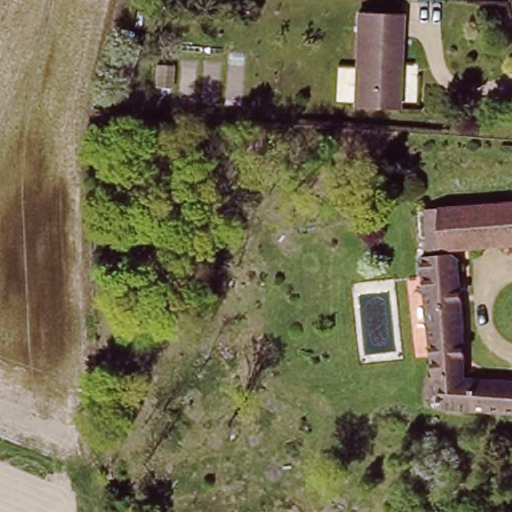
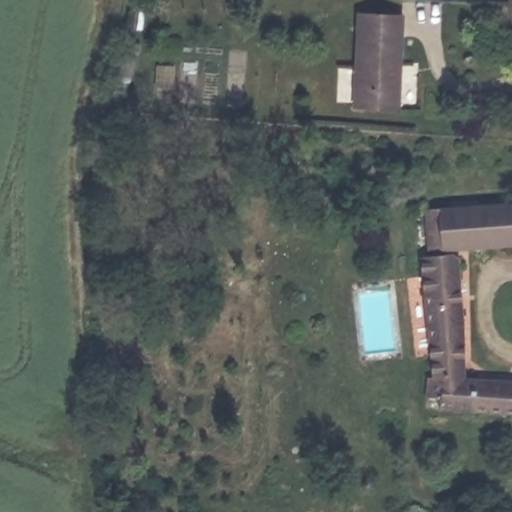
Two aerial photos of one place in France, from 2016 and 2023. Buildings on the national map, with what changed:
unchanged [(399,16),(397,41),(390,106),(347,102),(355,12),(399,16)]
unchanged [(440,243),(440,250),(454,249),(458,375),(512,380),(512,410),(435,403),(437,393),(422,391),(422,372),(426,369),(416,207),(512,202),(512,240),(440,243)]

